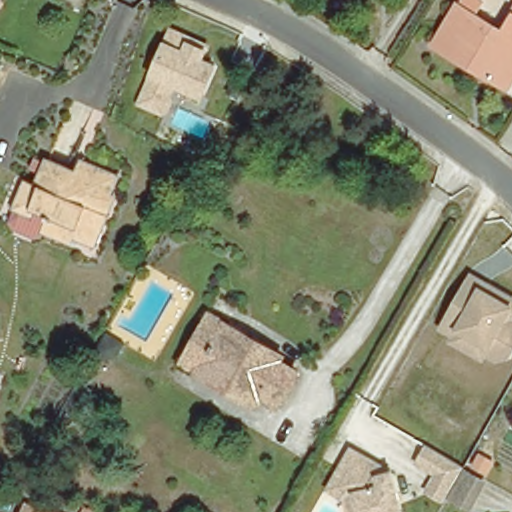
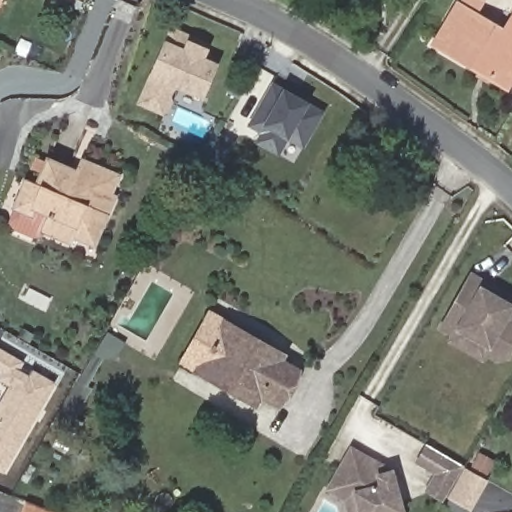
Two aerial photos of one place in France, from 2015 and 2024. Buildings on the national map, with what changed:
unchanged [(459,0),(461,0),(481,0),(475,9),(503,26),(512,11),(512,75),(507,82),(435,39),(459,0)]
unchanged [(206,57),(220,64),(202,101),(179,89),(167,117),(136,102),(173,26),(212,45),(206,57)]
new [(235,78),(245,84),(238,97),(227,91),(235,78)]
new [(282,93),(285,89),(323,111),(303,145),(287,137),(278,153),(256,140),(262,131),(249,123),(271,86),(282,93)]
new [(219,133),(234,141),(220,165),(205,157),(219,133)]
unchanged [(37,230),(18,222),(14,212),(19,201),(20,201),(31,174),(42,179),(53,153),(82,166),(88,154),(125,169),(116,189),(121,191),(100,238),(79,229),(75,236),(48,224),(47,226),(37,230)]
unchanged [(490,353),(483,362),(447,342),(451,334),(441,327),(471,271),(512,293),(512,355),(507,362),(490,353)]
unchanged [(277,358),(298,370),(278,406),(257,394),(252,402),(178,362),(206,313),(280,353),(277,358)]
new [(10,386),(0,381),(0,374),(0,348),(24,362),(20,369),(30,374),(32,369),(55,383),(5,473),(0,472),(0,402),(10,386)]
unchanged [(427,488),(436,473),(419,464),(429,446),(463,466),(453,483),(445,499),(427,488)]
unchanged [(397,475),(404,512),(352,512),(350,503),(333,493),(343,475),(356,452),(381,466),(397,475)]
unchanged [(466,471),(480,479),(465,505),(451,497),(466,471)]
unchanged [(60,512),(23,512),(27,500),(60,512)]
unchanged [(83,512),(86,505),(97,509),(96,512),(83,512)]

